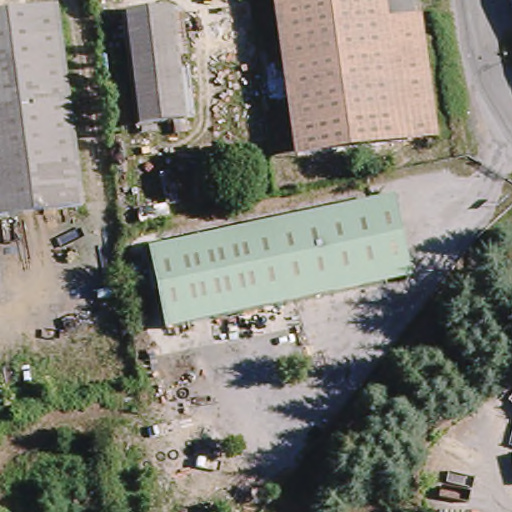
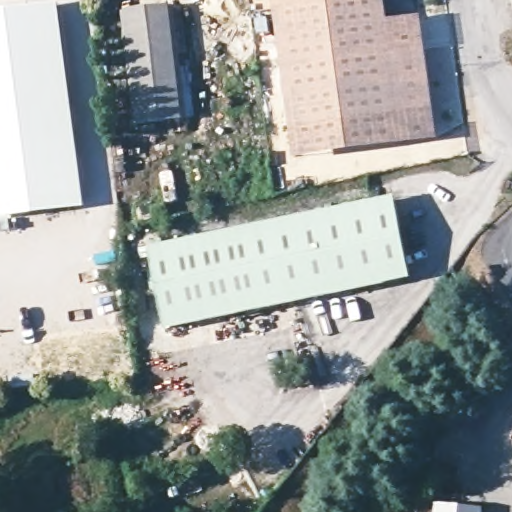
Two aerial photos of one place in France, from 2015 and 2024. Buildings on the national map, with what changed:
unchanged [(405,114),(299,127),(281,0),(388,0),(393,25),(405,114)]
unchanged [(0,221),(0,21),(60,16),(86,210),(0,221)]
unchanged [(142,131),(126,24),(177,16),(191,123),(142,131)]
unchanged [(422,21),(441,138),(302,154),(299,127),(405,114),(393,25),(422,21)]
unchanged [(393,199),(409,283),(162,332),(145,248),(393,199)]
new [(482,508),(482,512),(435,512),(435,503),(482,508)]

